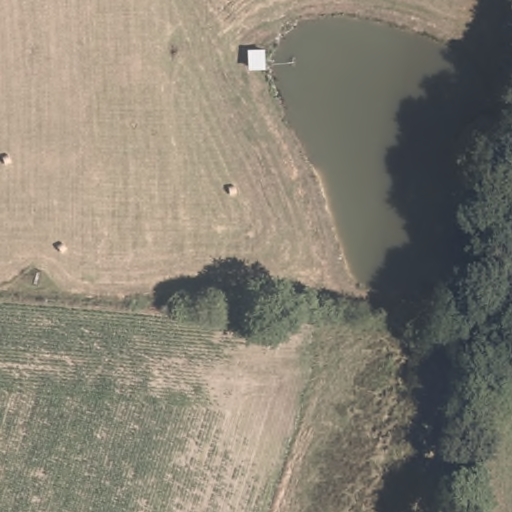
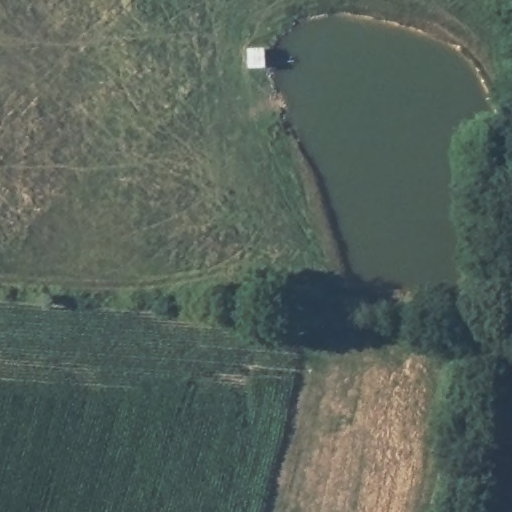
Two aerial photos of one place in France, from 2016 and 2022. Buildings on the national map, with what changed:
unchanged [(265,47),(265,67),(249,67),(249,48),(265,47)]

